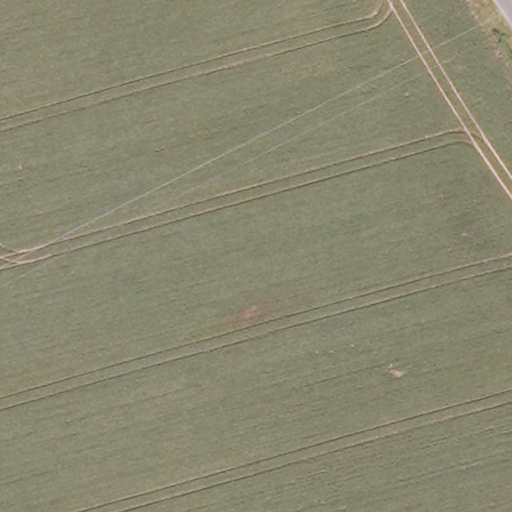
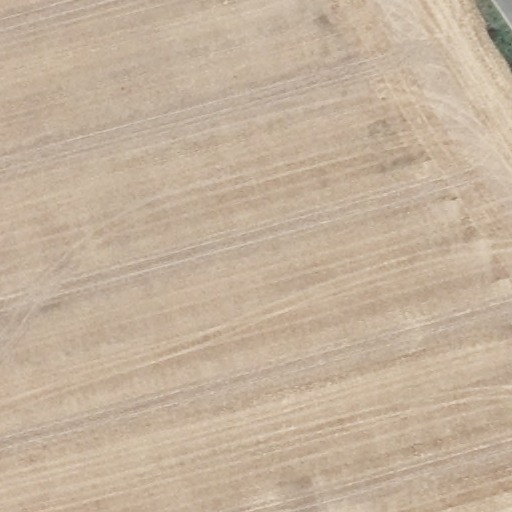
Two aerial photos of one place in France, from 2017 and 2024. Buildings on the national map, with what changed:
[]

